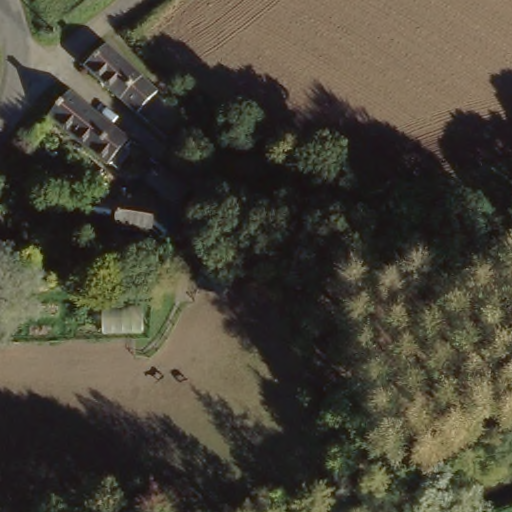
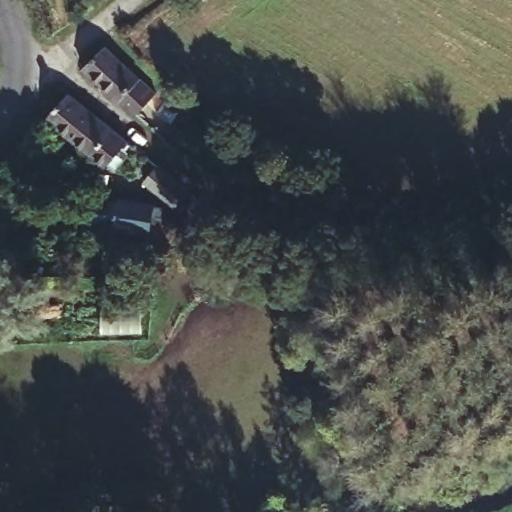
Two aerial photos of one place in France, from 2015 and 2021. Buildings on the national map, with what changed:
unchanged [(128,110),(110,95),(97,80),(83,67),(100,47),(103,44),(122,62),(153,94),(136,115),(128,110)]
unchanged [(56,111),(68,100),(105,127),(124,141),(113,157),(108,164),(49,119),(56,111)]
unchanged [(169,207),(140,182),(154,167),(183,190),(169,207)]
unchanged [(170,209),(173,213),(163,229),(138,211),(134,207),(147,190),(170,209)]
unchanged [(338,220),(328,215),(336,200),(348,207),(341,220),(341,221),(338,220)]
unchanged [(109,219),(143,225),(138,252),(124,251),(122,250),(106,248),(109,219)]

